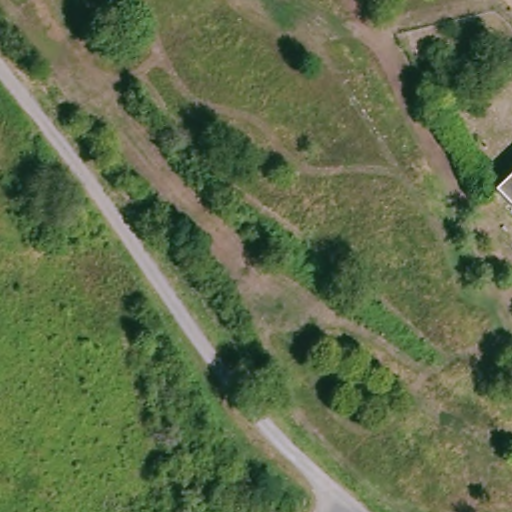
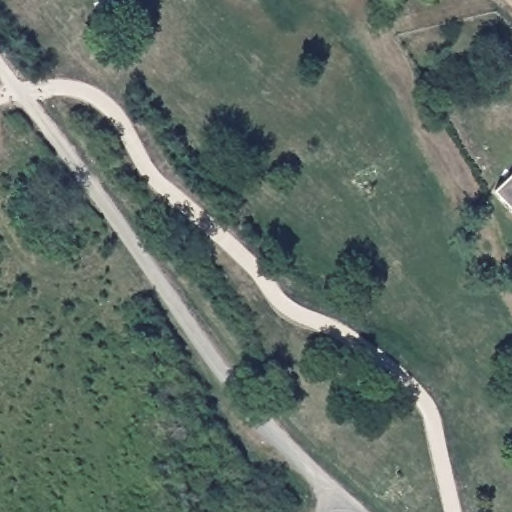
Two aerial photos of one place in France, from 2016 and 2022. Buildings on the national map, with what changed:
unchanged [(492,194),(512,174),(512,214),(492,194)]

